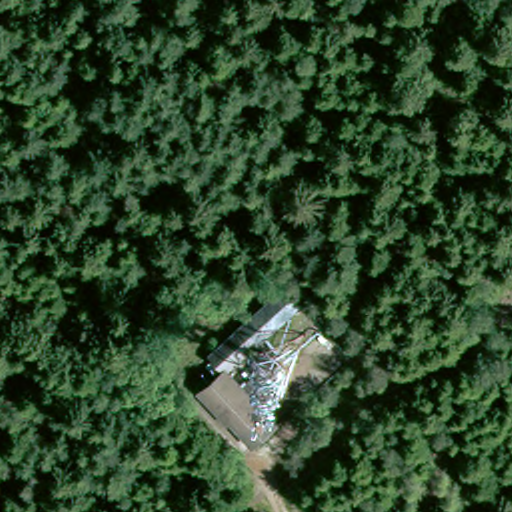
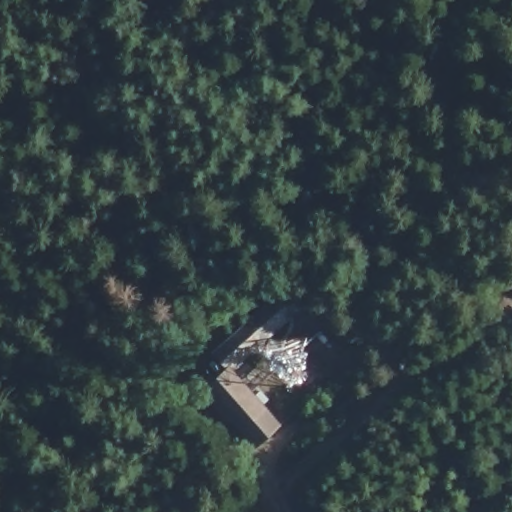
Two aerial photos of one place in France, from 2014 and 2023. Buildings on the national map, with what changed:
unchanged [(287,276),(312,305),(235,369),(216,342),(287,276)]
unchanged [(257,452),(240,434),(207,387),(235,369),(265,414),(280,431),(257,452)]

